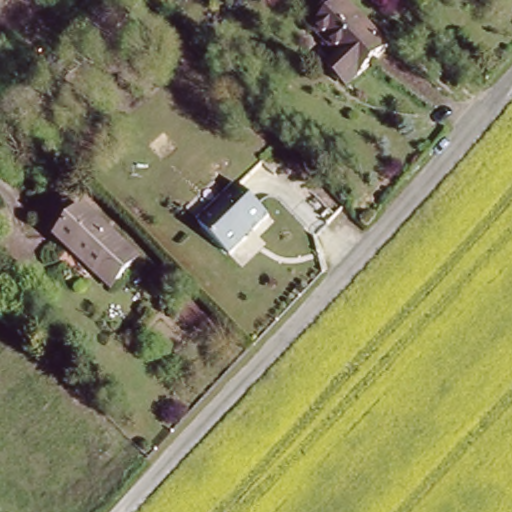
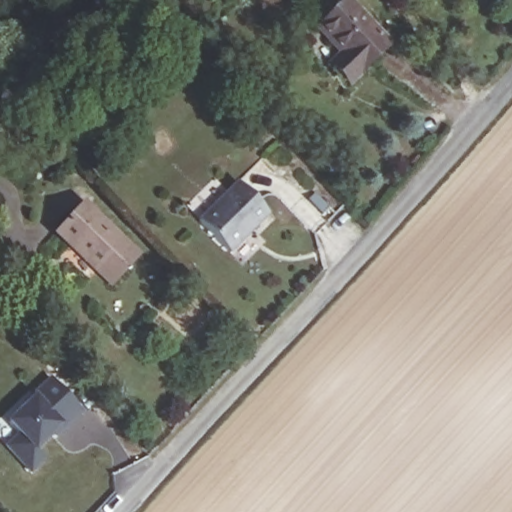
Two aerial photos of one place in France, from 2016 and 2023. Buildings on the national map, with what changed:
unchanged [(396,45),(354,87),(336,69),(349,55),(326,32),(354,3),(396,45)]
unchanged [(269,212),(231,250),(198,221),(239,181),(269,212)]
unchanged [(143,251),(111,283),(95,268),(99,263),(60,226),(86,199),(143,251)]
new [(18,435),(5,423),(34,396),(49,380),(82,415),(60,438),(59,436),(56,438),(54,436),(36,453),(45,462),(32,475),(4,449),(18,435)]

